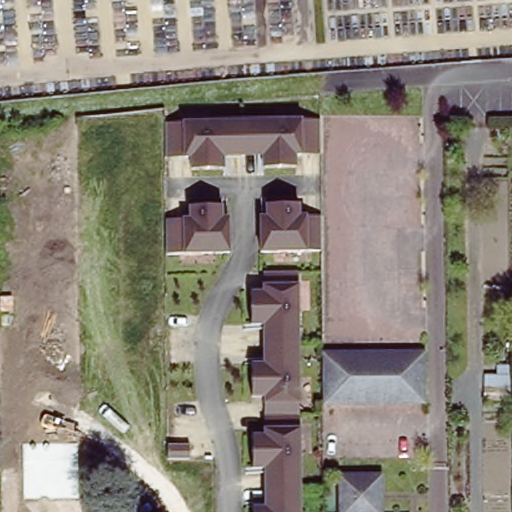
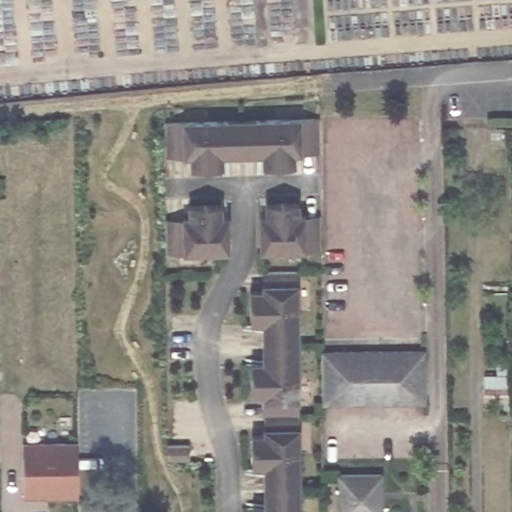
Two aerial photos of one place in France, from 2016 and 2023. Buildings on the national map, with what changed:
unchanged [(161,122),(326,119),(326,153),(317,154),(318,168),(281,168),(281,157),(203,158),(203,172),(178,172),(178,158),(161,157),(161,122)]
unchanged [(161,221),(179,220),(179,202),(216,202),(219,223),(226,223),(227,252),(161,253),(161,221)]
unchanged [(254,223),(264,222),(263,207),(314,208),(314,215),(323,216),(324,252),(255,252),(254,223)]
unchanged [(259,506),(260,469),(249,469),(248,433),(263,431),(261,398),(248,397),(248,360),(260,362),(261,328),(249,326),(248,293),(258,293),(258,278),(299,277),(300,512),(248,512),(248,506),(259,506)]
unchanged [(427,355),(427,408),(324,409),(324,356),(427,355)]
new [(76,446),(77,500),(48,500),(45,498),(38,498),(38,500),(22,500),(21,445),(76,446)]
unchanged [(341,512),(341,478),(384,478),(383,512),(341,512)]

